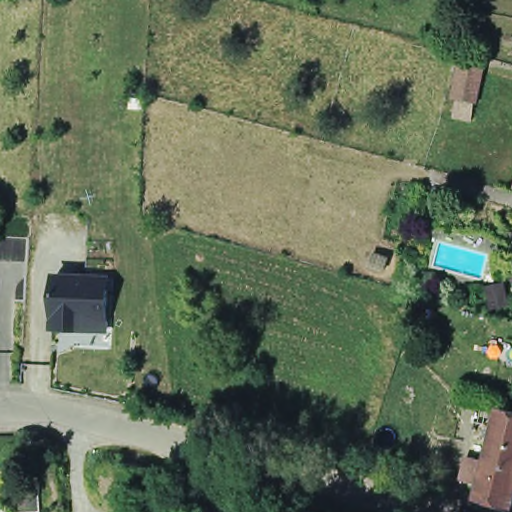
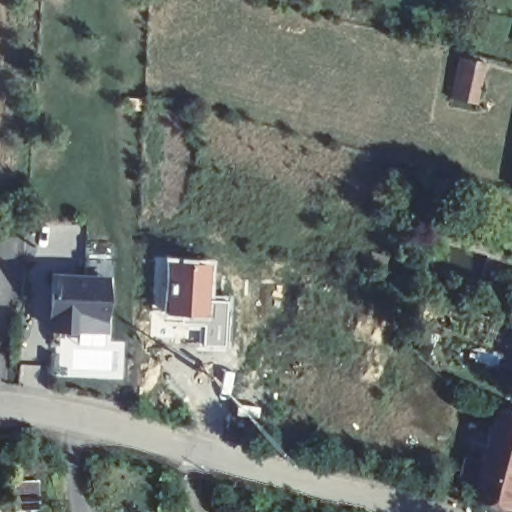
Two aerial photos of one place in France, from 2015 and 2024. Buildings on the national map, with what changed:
unchanged [(486,92),(483,102),(458,96),(460,85),(467,56),(492,62),(486,92)]
new [(162,255),(213,258),(212,295),(209,316),(162,312),(162,255)]
unchanged [(111,272),(109,333),(50,329),(51,268),(111,272)]
new [(162,312),(209,316),(212,295),(230,295),(228,350),(200,348),(201,327),(161,321),(162,312)]
unchanged [(476,487),(460,482),(466,460),(482,464),(487,447),(496,412),(510,415),(512,416),(512,499),(508,512),(472,502),(476,487)]
unchanged [(39,512),(15,512),(14,484),(38,483),(39,512)]

